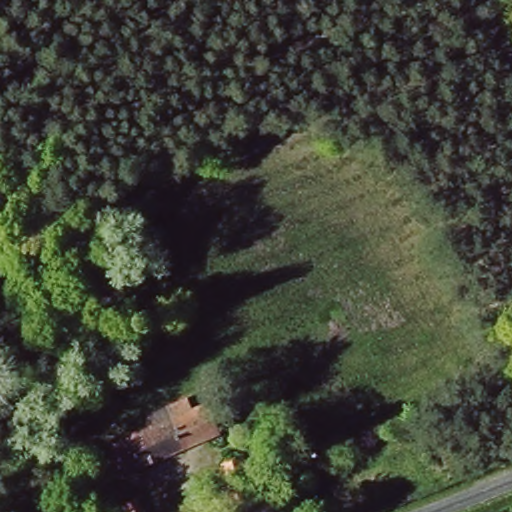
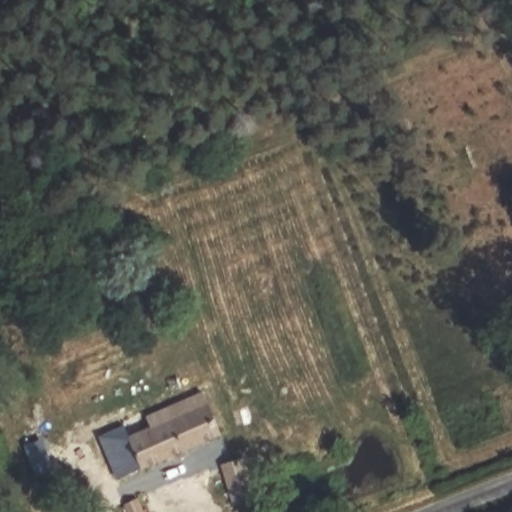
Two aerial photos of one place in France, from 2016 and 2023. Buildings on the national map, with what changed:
unchanged [(156,427),(149,410),(171,401),(178,418),(214,403),(226,435),(128,472),(117,442),(156,427)]
unchanged [(270,503),(245,512),(231,472),(255,463),(270,503)]
unchanged [(143,490),(152,512),(130,512),(125,498),(138,492),(143,490)]

